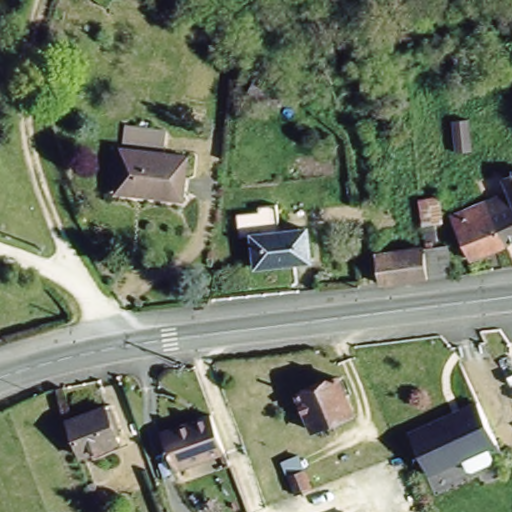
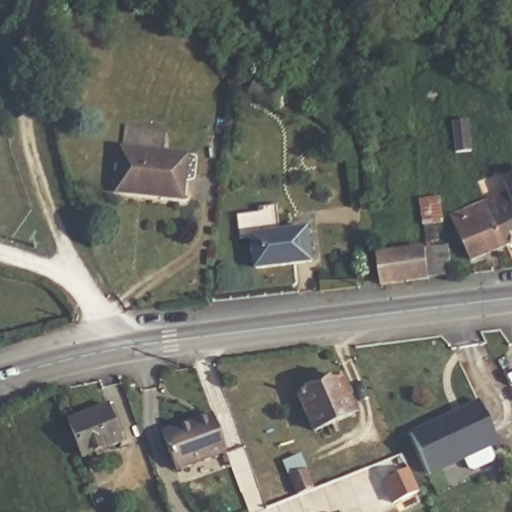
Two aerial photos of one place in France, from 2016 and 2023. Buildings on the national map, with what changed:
unchanged [(279,105),(252,93),(256,83),(283,95),(279,105)]
unchanged [(161,155),(185,157),(180,200),(149,196),(150,191),(115,186),(122,129),(164,134),(161,155)]
unchanged [(488,196),(510,187),(505,174),(512,171),(512,237),(507,240),(488,196)]
unchanged [(507,240),(472,256),(457,225),(469,219),(463,206),(488,196),(507,240)]
unchanged [(419,249),(416,226),(413,205),(437,202),(439,224),(428,225),(430,242),(425,243),(425,249),(443,246),(446,275),(419,280),(371,285),(368,255),(416,250),(419,249)]
unchanged [(260,214),(259,209),(278,206),(281,233),(309,230),(313,263),(257,269),(254,239),(242,240),(239,215),(260,214)]
unchanged [(340,378),(356,415),(316,431),(301,395),(340,378)]
unchanged [(480,396),(499,436),(432,468),(413,428),(480,396)]
unchanged [(107,400),(120,435),(76,452),(63,416),(107,400)]
unchanged [(158,427),(183,418),(207,410),(219,446),(196,455),(171,463),(158,427)]
unchanged [(306,471),(322,512),(305,512),(291,477),(306,471)]
unchanged [(95,482),(101,497),(95,500),(89,484),(95,482)]

